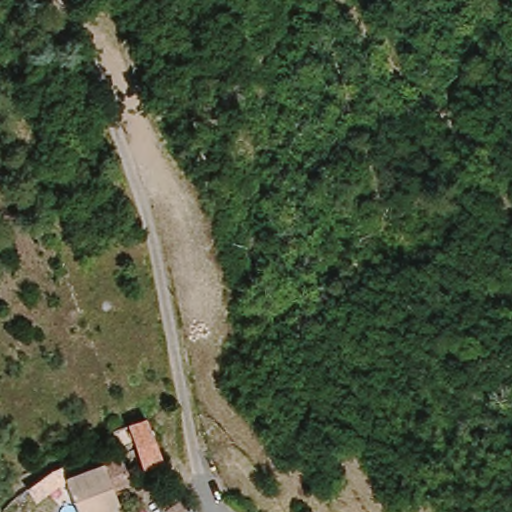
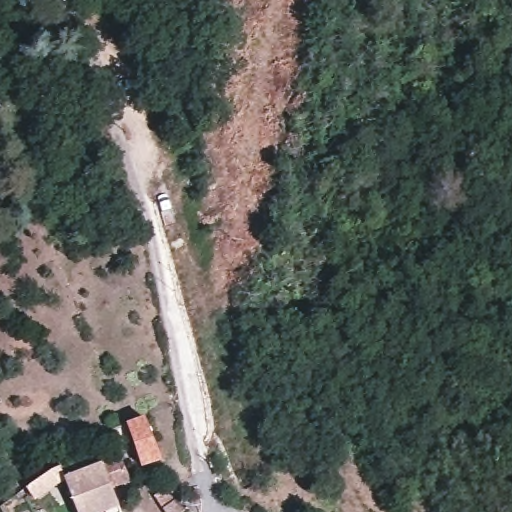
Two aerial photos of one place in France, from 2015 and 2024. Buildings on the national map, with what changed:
unchanged [(154,440),(160,452),(150,457),(142,461),(132,437),(115,445),(107,430),(125,421),(141,414),(154,440)]
unchanged [(56,478),(75,468),(92,461),(112,451),(123,472),(117,476),(114,477),(103,483),(110,499),(105,502),(98,505),(99,507),(100,512),(98,512),(69,512),(65,503),(56,478)]
unchanged [(168,512),(160,502),(151,490),(162,481),(172,493),(180,503),(168,512)]

